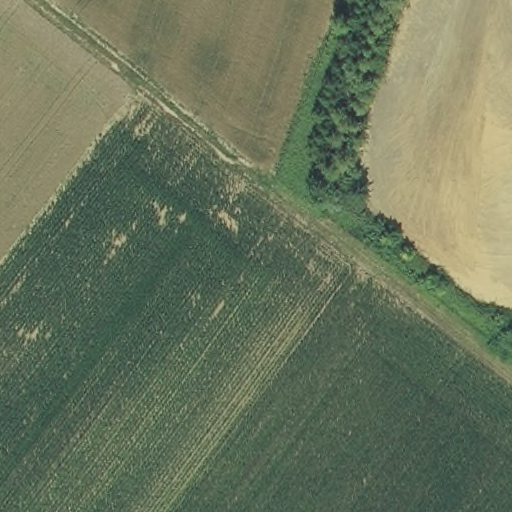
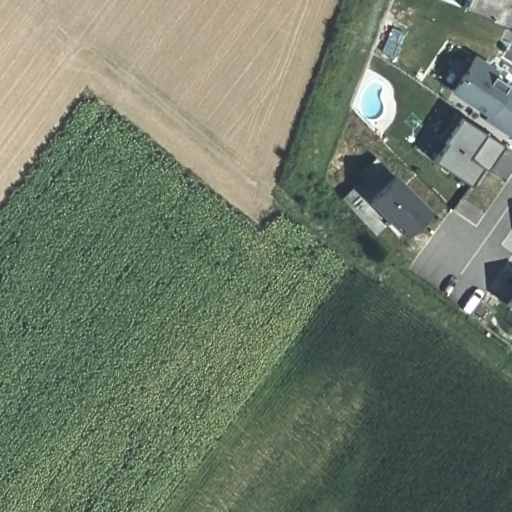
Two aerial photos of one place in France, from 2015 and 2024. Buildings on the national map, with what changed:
new [(461,7),(464,0),(512,0),(512,17),(507,28),(461,7)]
new [(479,57),(499,70),(496,74),(501,77),(498,81),(512,89),(512,134),(489,119),(492,115),(456,91),(479,57)]
new [(501,77),(512,84),(512,86),(510,89),(498,81),(501,77)]
new [(445,142),(442,141),(437,138),(452,112),(458,116),(483,132),(482,133),(502,145),(485,170),(480,167),(469,184),(432,160),(445,142)]
new [(380,161),(393,177),(396,174),(431,210),(403,238),(387,221),(385,226),(385,227),(375,236),(342,200),(380,161)]
new [(505,306),(512,297),(512,310),(505,306)]

